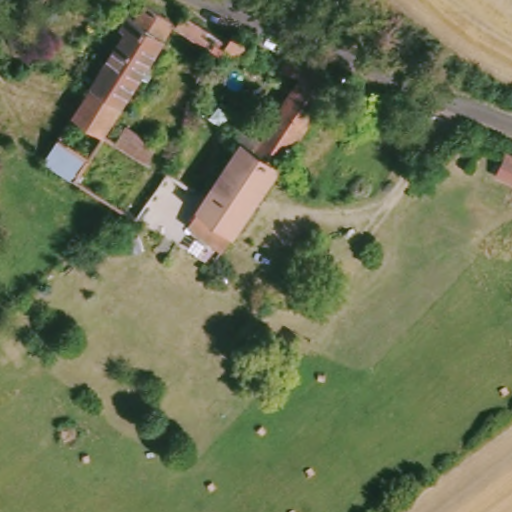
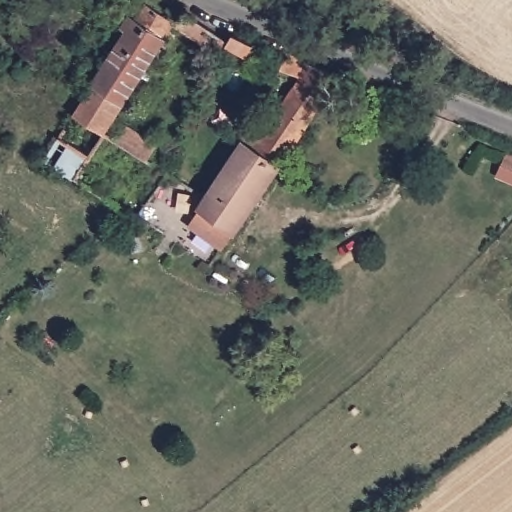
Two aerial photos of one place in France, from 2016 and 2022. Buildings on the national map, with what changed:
unchanged [(103,131),(70,112),(125,27),(115,21),(125,5),(134,10),(140,0),(150,0),(176,17),(103,131)]
unchanged [(227,39),(222,48),(176,17),(187,1),(231,33),(235,27),(256,38),(250,51),(227,39)]
unchanged [(275,167),(232,232),(194,205),(237,140),(237,139),(230,135),(244,116),(259,128),(292,77),(275,66),(281,54),(337,75),(275,167)]
unchanged [(153,137),(143,152),(113,134),(122,118),(153,137)]
unchanged [(72,179),(39,160),(57,132),(90,152),(72,179)]
unchanged [(512,182),(494,174),(502,151),(512,155),(512,182)]
unchanged [(150,200),(164,211),(151,227),(137,215),(150,200)]

